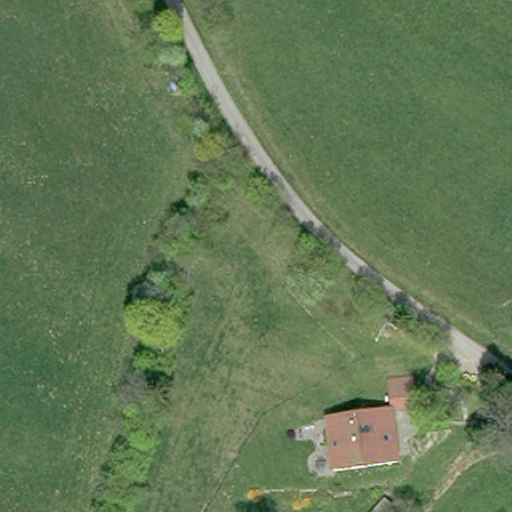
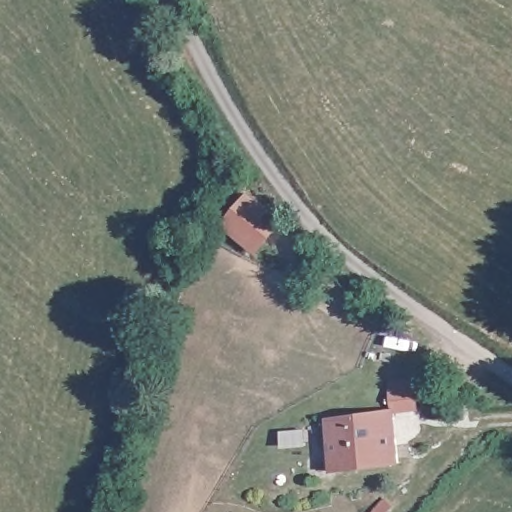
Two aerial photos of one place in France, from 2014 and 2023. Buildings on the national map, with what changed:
new [(221,225),(246,193),(284,223),(258,255),(221,225)]
unchanged [(331,480),(324,423),(351,418),(359,416),(358,406),(389,401),(388,379),(414,376),(418,410),(391,412),(399,467),(331,480)]

